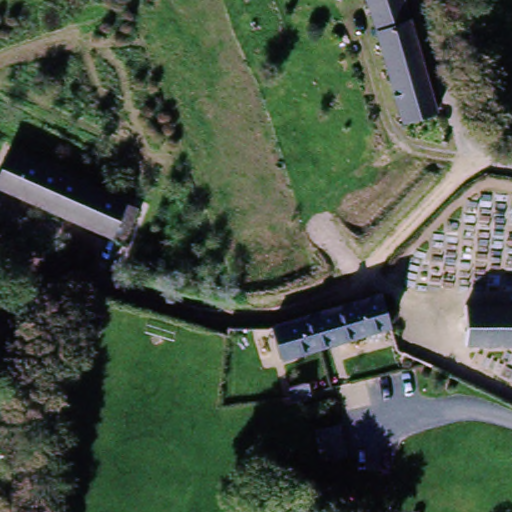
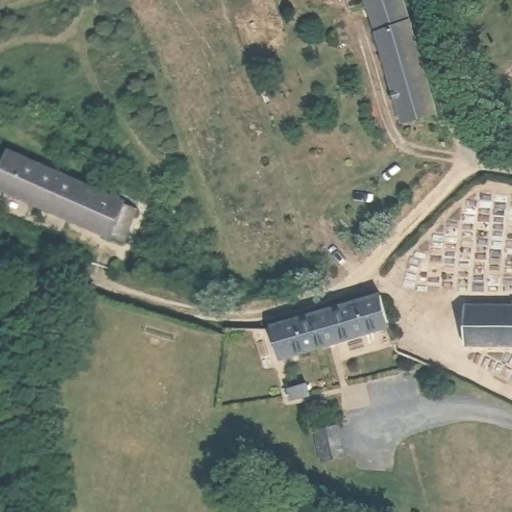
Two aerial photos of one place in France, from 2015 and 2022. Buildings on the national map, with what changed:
unchanged [(432,119),(404,128),(361,0),(393,0),(399,15),(432,119)]
unchanged [(0,182),(8,162),(139,217),(125,249),(0,194),(0,182)]
unchanged [(458,343),(461,302),(512,306),(512,347),(458,343)]
unchanged [(373,339),(277,364),(269,329),(375,304),(384,336),(373,339)]
unchanged [(308,401),(287,406),(284,393),(305,388),(308,401)]
unchanged [(343,454),(322,459),(316,425),(336,421),(343,454)]
unchanged [(293,512),(270,512),(272,504),(293,512)]

